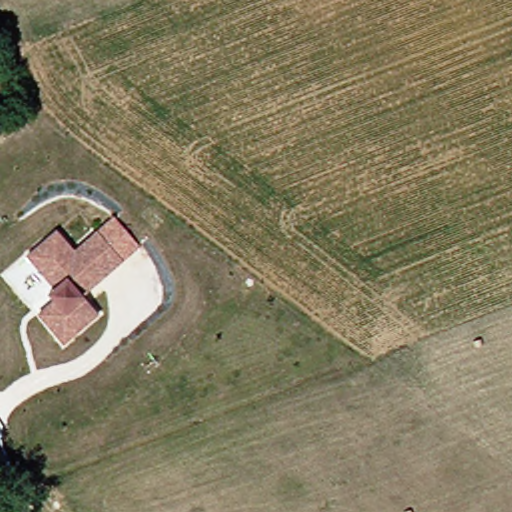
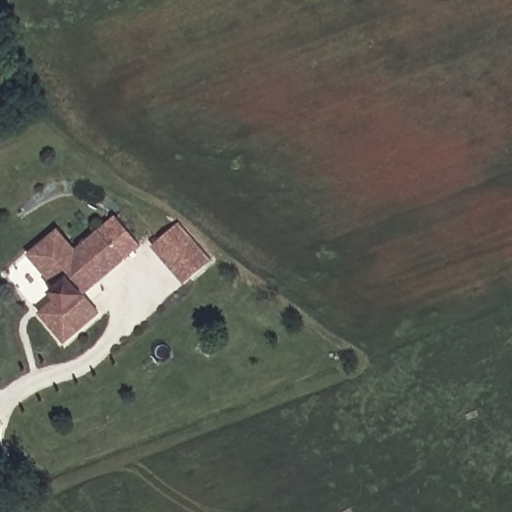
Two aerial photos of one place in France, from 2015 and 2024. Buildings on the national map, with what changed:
unchanged [(98,229),(115,216),(140,246),(125,260),(122,257),(98,229)]
unchanged [(20,244),(50,219),(73,248),(97,228),(122,257),(98,278),(82,292),(106,321),(71,350),(46,321),(63,306),(57,299),(62,294),(20,244)]
new [(177,224),(211,259),(183,281),(152,247),(177,224)]

